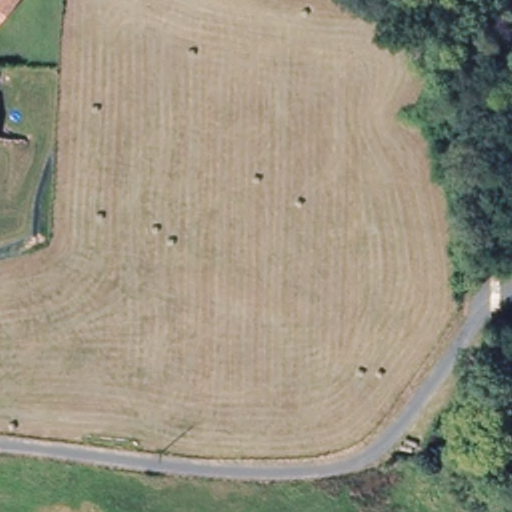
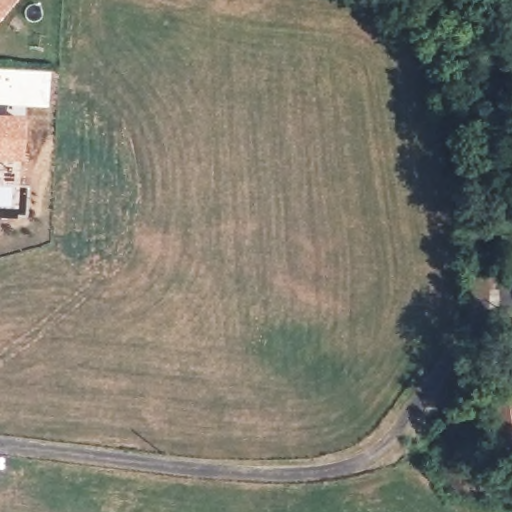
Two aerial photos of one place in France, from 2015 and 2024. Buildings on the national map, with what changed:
unchanged [(0,17),(0,0),(14,0),(0,17)]
new [(26,118),(24,162),(0,160),(0,117),(26,118)]

